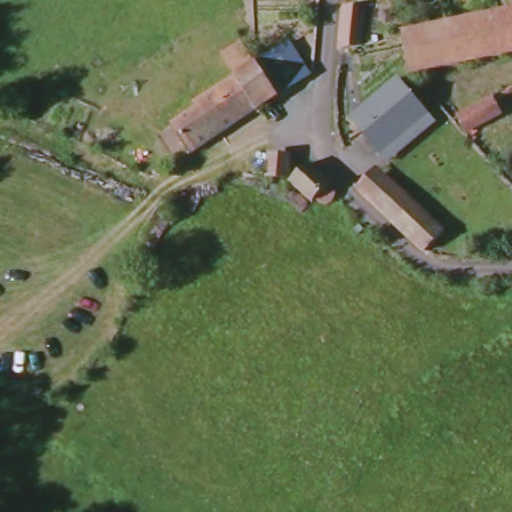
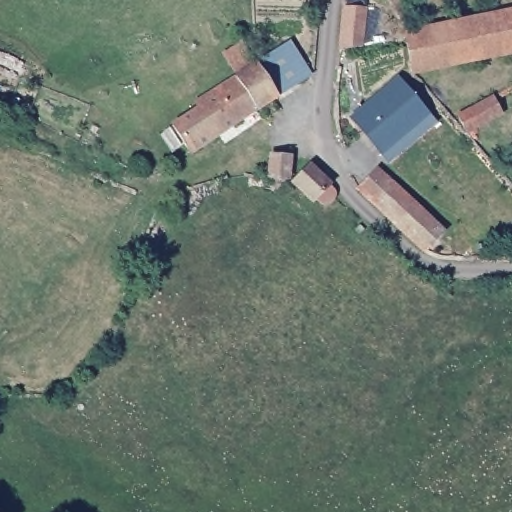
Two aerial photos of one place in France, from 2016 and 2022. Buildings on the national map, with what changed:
unchanged [(370,3),(367,41),(345,44),(350,2),(370,3)]
unchanged [(405,32),(512,12),(512,51),(414,71),(409,48),(378,55),(375,38),(405,32)]
unchanged [(307,76),(191,153),(171,124),(192,111),(190,103),(255,61),(282,44),(307,76)]
unchanged [(390,158),(383,150),(353,115),(400,76),(430,112),(435,119),(390,158)]
unchanged [(501,114),(470,132),(460,114),(493,98),(501,114)]
unchanged [(287,170),(266,169),(267,152),(289,152),(287,170)]
unchanged [(340,188),(329,200),(319,192),(313,198),(293,177),(310,158),(340,188)]
unchanged [(442,229),(425,248),(358,190),(375,169),(442,229)]

